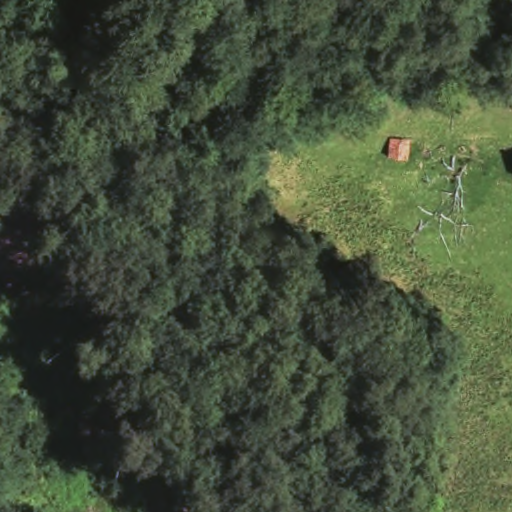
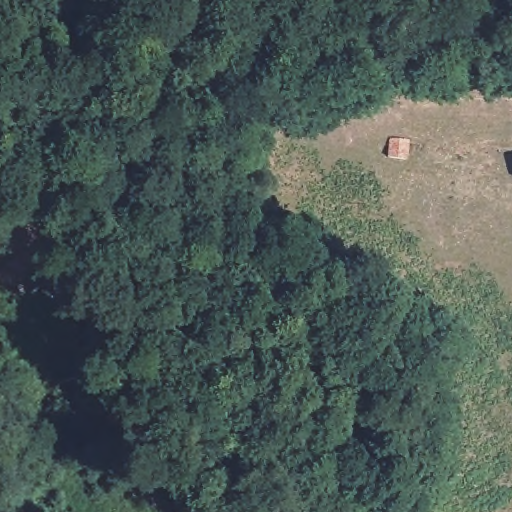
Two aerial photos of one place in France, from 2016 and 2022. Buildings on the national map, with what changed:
unchanged [(419,163),(400,162),(385,162),(387,139),(420,141),(419,163)]

